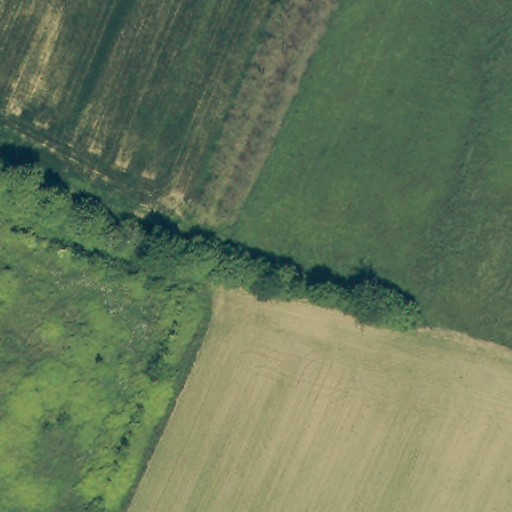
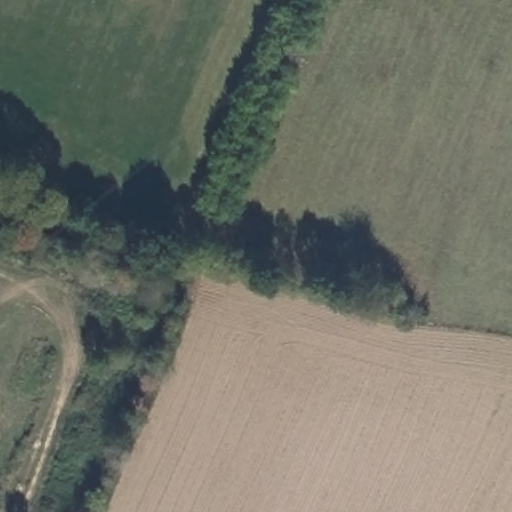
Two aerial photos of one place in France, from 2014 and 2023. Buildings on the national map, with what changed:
[]

